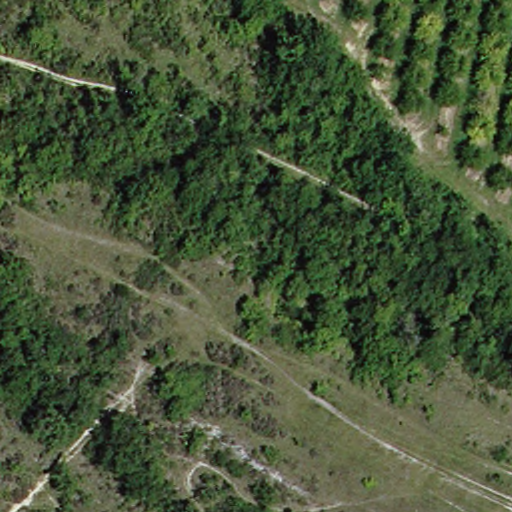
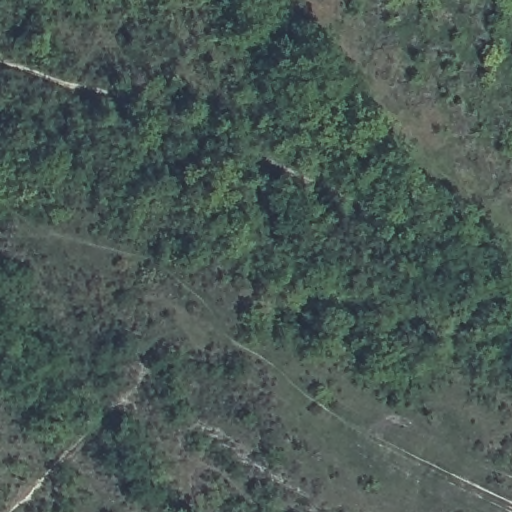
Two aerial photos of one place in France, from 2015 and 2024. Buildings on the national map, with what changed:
[]

